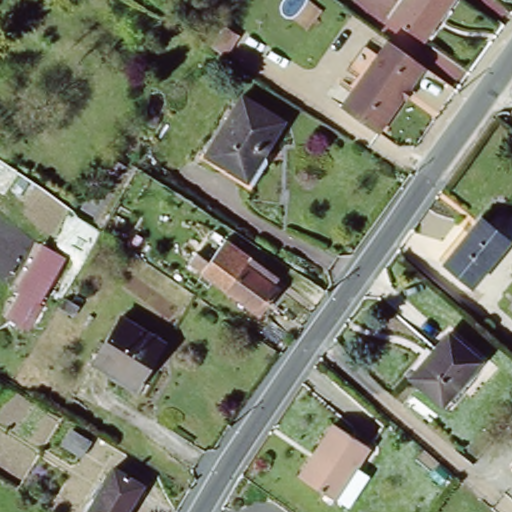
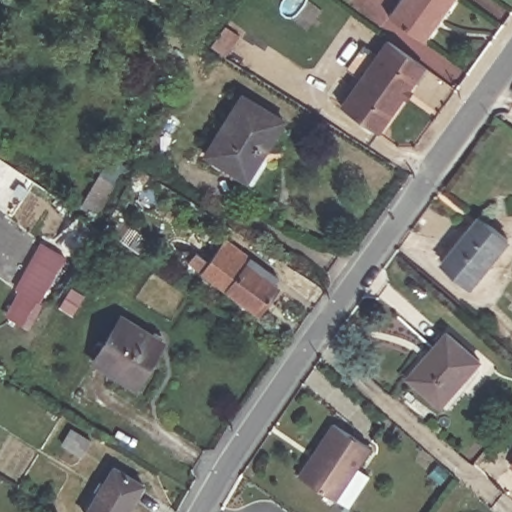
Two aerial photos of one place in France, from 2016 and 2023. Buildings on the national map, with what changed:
unchanged [(429,45),(393,20),(407,0),(460,0),(429,45)]
unchanged [(345,107),(391,42),(428,68),(382,133),(345,107)]
unchanged [(261,153),(268,165),(253,188),(203,154),(242,97),(281,123),(261,153)]
unchanged [(445,265),(483,221),(512,247),(512,251),(474,293),(445,265)]
unchanged [(198,250),(209,259),(225,236),(282,281),(258,315),(201,270),(188,261),(198,250)]
unchanged [(20,291),(16,289),(42,243),(66,257),(39,303),(43,305),(28,329),(6,317),(20,291)]
unchanged [(133,394),(95,362),(128,321),(166,352),(133,394)]
unchanged [(438,403),(421,388),(408,377),(445,334),(458,346),(475,361),(438,403)]
unchanged [(332,503),(300,481),(317,457),(312,454),(331,428),(367,454),(332,503)]
unchanged [(64,456),(75,440),(92,452),(83,467),(64,456)]
unchanged [(144,485),(127,512),(88,512),(115,468),(144,485)]

